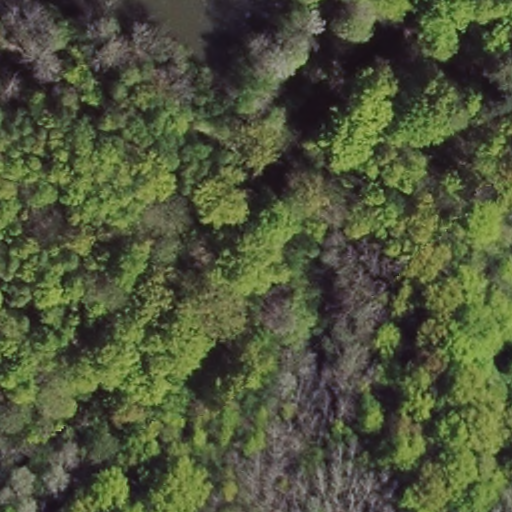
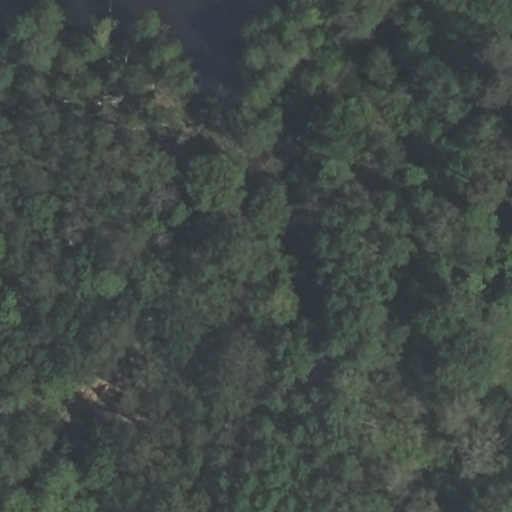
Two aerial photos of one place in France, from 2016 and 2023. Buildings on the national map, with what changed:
[]

